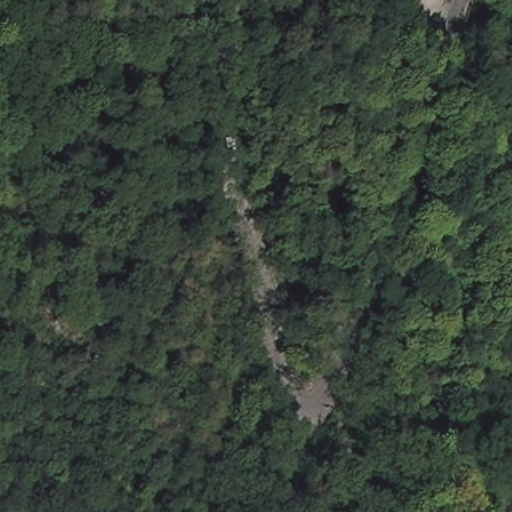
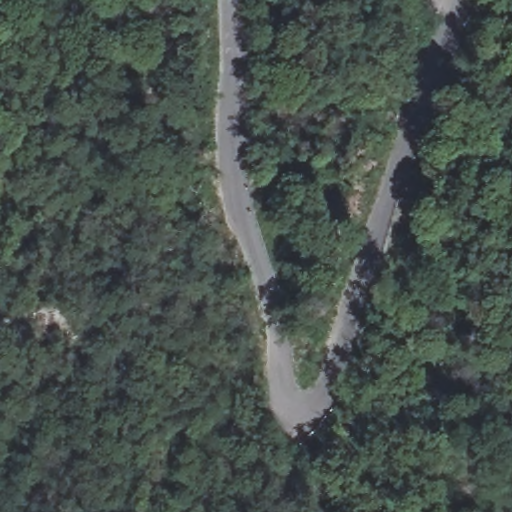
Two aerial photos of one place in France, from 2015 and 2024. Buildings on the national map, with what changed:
unchanged [(512,187),(512,202),(498,200),(501,185),(512,187)]

